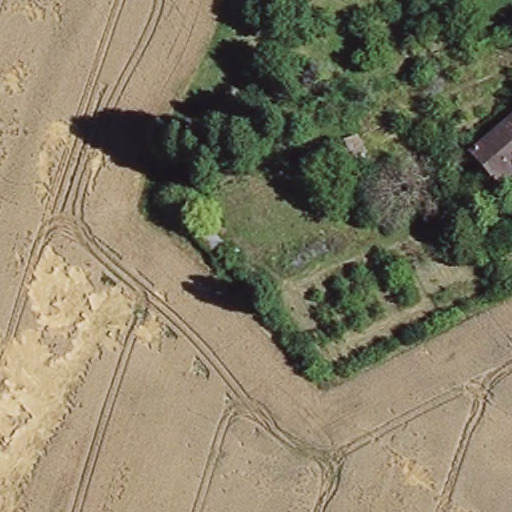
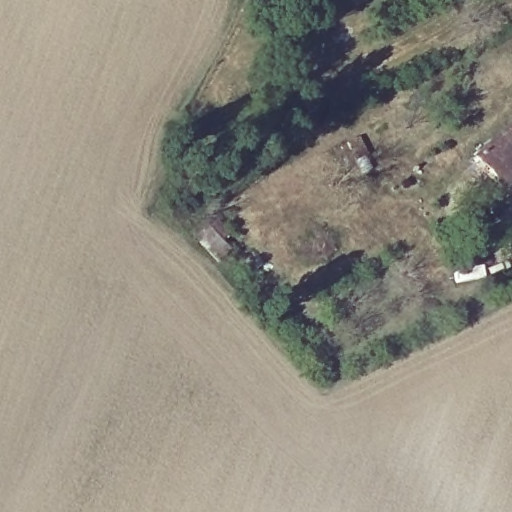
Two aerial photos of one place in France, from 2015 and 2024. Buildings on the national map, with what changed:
unchanged [(473,150),(512,127),(512,176),(495,186),(473,150)]

